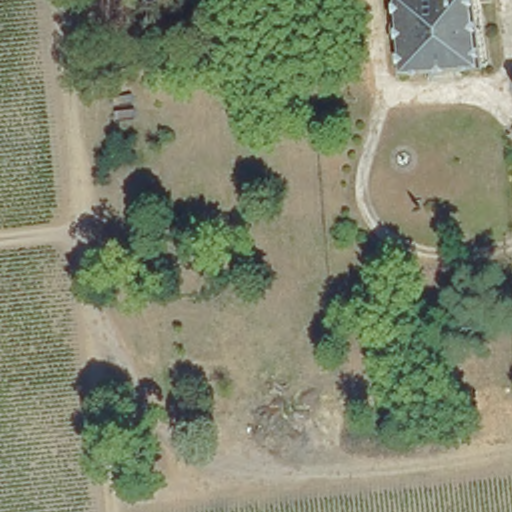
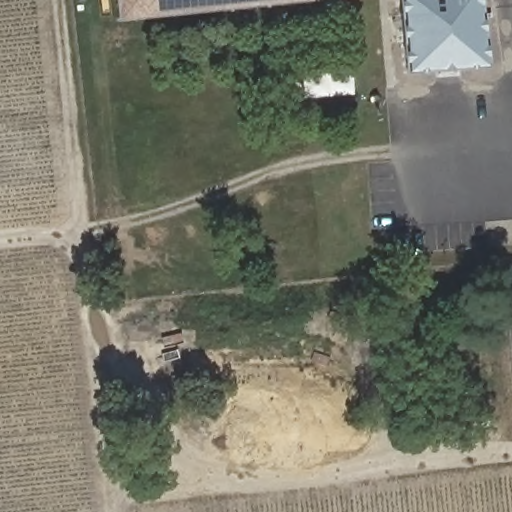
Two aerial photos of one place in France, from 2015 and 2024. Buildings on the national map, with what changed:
new [(117,0),(294,0),(119,19),(117,0)]
unchanged [(409,75),(402,0),(481,0),(488,67),(409,75)]

